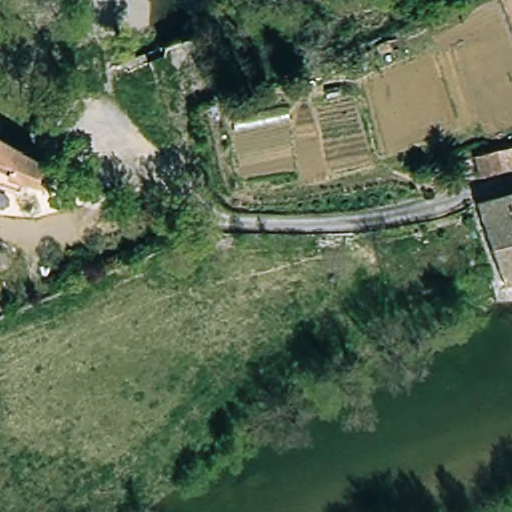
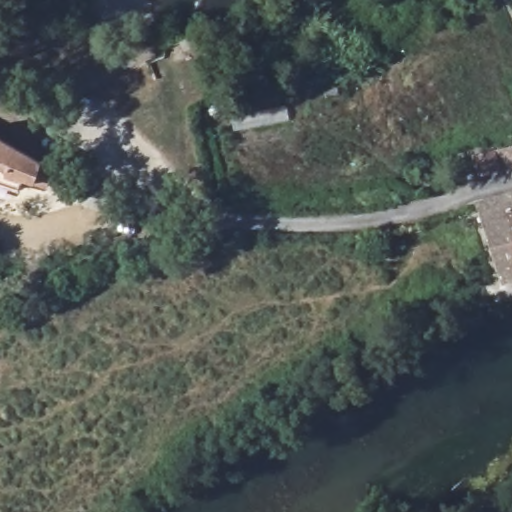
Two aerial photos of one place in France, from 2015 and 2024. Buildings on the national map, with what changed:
unchanged [(220,86),(203,93),(178,43),(202,37),(220,86)]
unchanged [(0,183),(0,141),(23,154),(44,166),(39,184),(16,177),(13,187),(0,183)]
unchanged [(512,146),(512,166),(477,174),(472,155),(512,146)]
unchanged [(501,279),(476,203),(512,193),(512,276),(501,279)]

